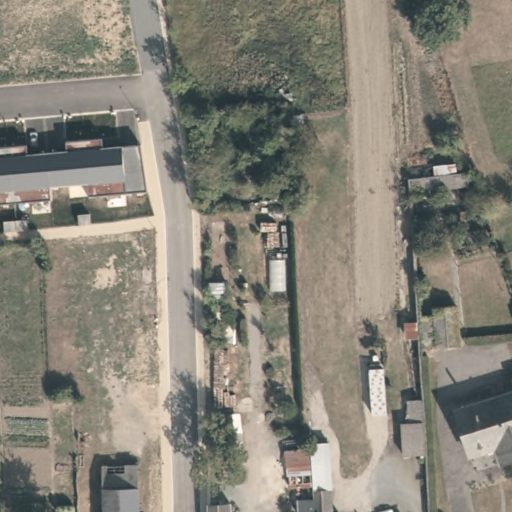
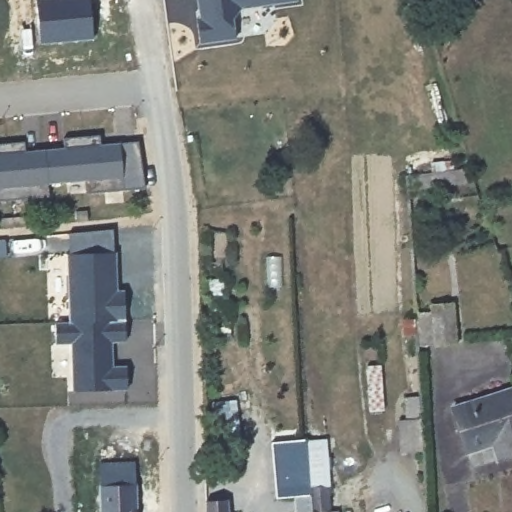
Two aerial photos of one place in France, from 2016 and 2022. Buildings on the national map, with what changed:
new [(299,0),(239,10),(232,18),(235,39),(199,45),(194,15),(198,13),(195,0),(298,0),(299,0)]
unchanged [(47,184),(48,196),(0,200),(0,146),(23,143),(26,152),(65,149),(63,138),(100,134),(102,145),(120,144),(136,142),(144,187),(86,191),(86,181),(47,184)]
unchanged [(476,181),(454,183),(454,170),(474,168),(476,181)]
unchanged [(448,171),(449,184),(431,186),(431,173),(448,171)]
new [(118,292),(125,292),(126,342),(114,343),(114,366),(128,366),(128,389),(71,392),(70,344),(53,344),(51,322),(69,320),(67,233),(113,228),(118,292)]
unchanged [(461,343),(424,345),(424,314),(439,313),(438,305),(459,303),(461,343)]
unchanged [(411,333),(409,317),(419,318),(421,333),(411,333)]
unchanged [(370,410),(367,366),(384,364),(386,409),(370,410)]
unchanged [(503,460),(498,444),(473,452),(458,406),(512,390),(512,457),(503,460)]
unchanged [(400,419),(407,418),(405,396),(419,395),(420,418),(422,450),(401,451),(400,419)]
unchanged [(211,471),(208,432),(215,431),(214,396),(222,396),(223,408),(231,408),(232,429),(237,429),(239,454),(237,455),(239,468),(211,471)]
unchanged [(298,511),(295,496),(287,497),(284,447),(307,444),(307,439),(328,438),(330,485),(329,485),(329,510),(338,510),(338,512),(312,512),(312,511),(298,511)]
unchanged [(105,462),(140,461),(142,512),(107,512),(105,464),(105,462)]
unchanged [(235,500),(236,512),(211,512),(211,501),(235,500)]

